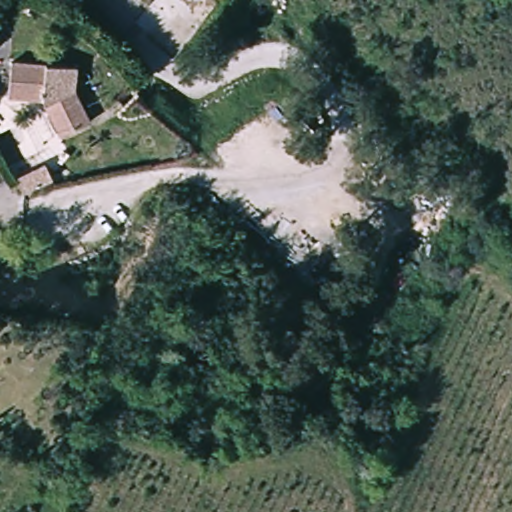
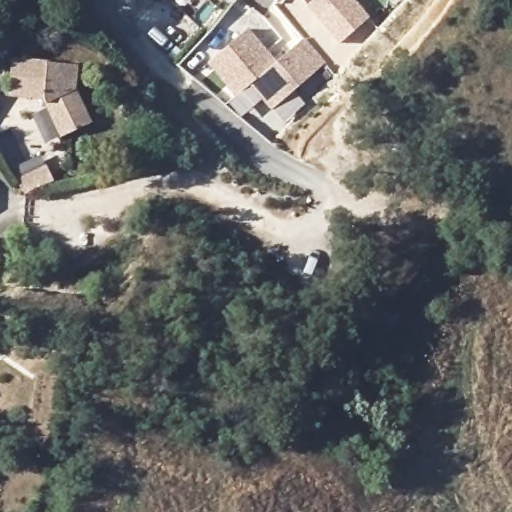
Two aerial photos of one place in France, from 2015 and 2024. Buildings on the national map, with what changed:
new [(353,0),(369,18),(341,42),(307,5),(313,0),(353,0)]
new [(278,60),(304,37),(326,62),(271,110),(249,85),(235,97),(207,64),(247,27),(278,60)]
unchanged [(78,75),(72,99),(85,132),(55,145),(39,105),(6,97),(15,61),(78,75)]
unchanged [(53,180),(26,194),(16,177),(45,163),(53,180)]

